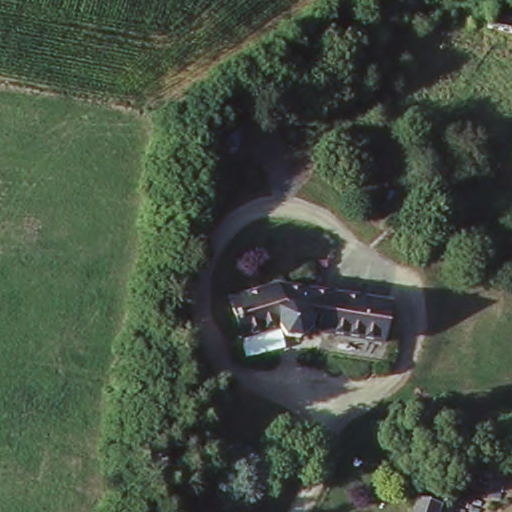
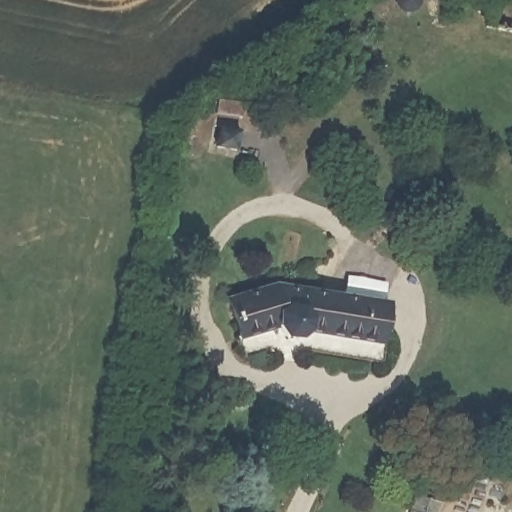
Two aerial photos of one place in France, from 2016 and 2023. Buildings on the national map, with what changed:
unchanged [(243,135),(239,150),(219,145),(222,130),(243,135)]
unchanged [(308,330),(311,320),(293,315),(290,325),(288,325),(287,330),(269,326),(267,319),(235,325),(227,285),(281,275),(384,302),(372,347),(308,330)]
unchanged [(430,512),(408,512),(413,493),(434,498),(430,512)]

